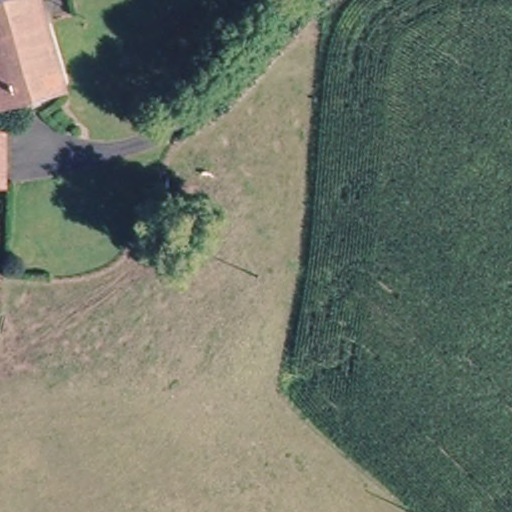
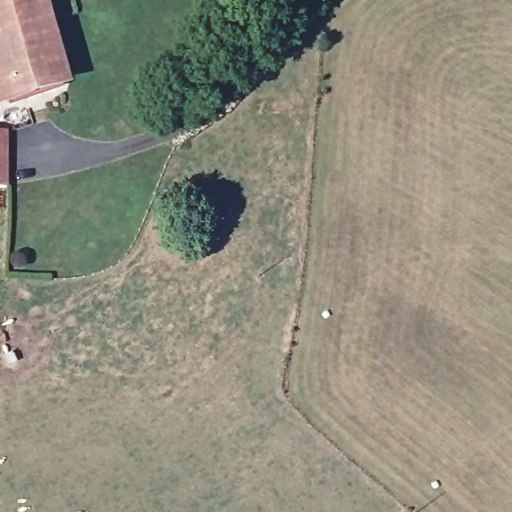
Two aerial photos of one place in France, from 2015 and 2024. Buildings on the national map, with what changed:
unchanged [(70,84),(0,102),(0,0),(44,0),(70,84)]
unchanged [(12,123),(13,190),(5,190),(0,189),(0,123),(12,123)]

